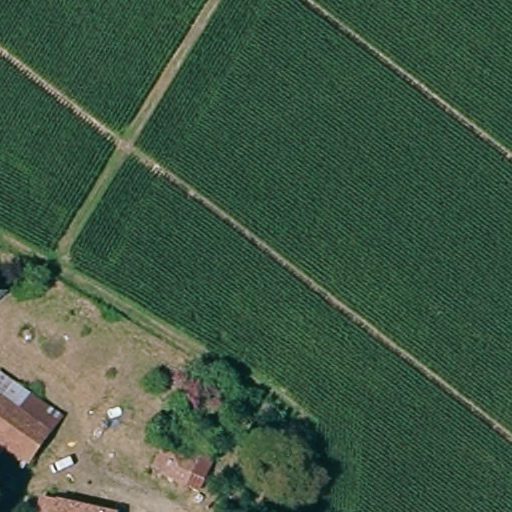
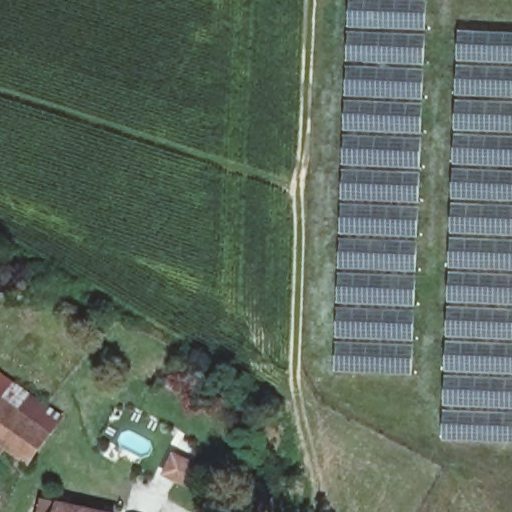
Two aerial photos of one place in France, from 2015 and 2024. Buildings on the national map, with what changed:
new [(413,373),(335,370),(348,0),(427,0),(413,373)]
new [(512,32),(512,441),(443,438),(459,30),(512,32)]
unchanged [(0,282),(2,284),(11,292),(0,302),(0,282)]
unchanged [(0,388),(49,425),(31,455),(0,434),(0,388)]
demolished [(213,470),(204,484),(186,473),(166,461),(176,446),(213,470)]
new [(195,460),(200,450),(222,461),(205,496),(160,477),(172,450),(195,460)]
unchanged [(105,512),(50,512),(53,498),(105,512)]

